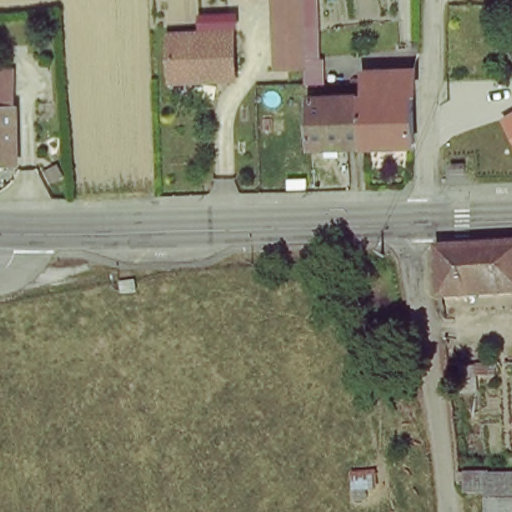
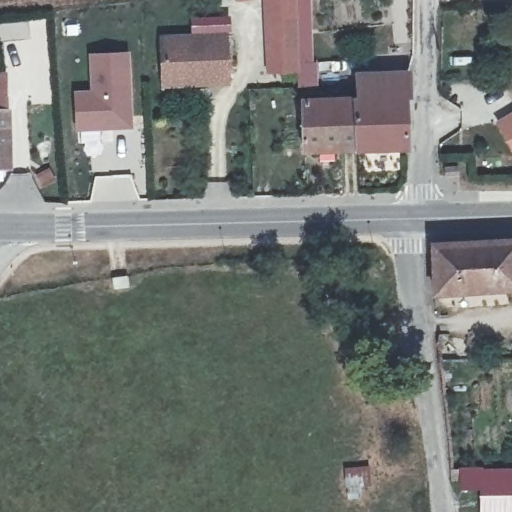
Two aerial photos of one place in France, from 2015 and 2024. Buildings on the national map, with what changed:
unchanged [(267,70),(265,10),(239,13),(239,0),(310,0),(310,5),(313,70),(267,70)]
unchanged [(373,2),(373,0),(394,0),(373,2)]
unchanged [(166,37),(229,35),(233,75),(191,74),(193,86),(172,85),(166,37)]
new [(88,88),(88,52),(130,50),(134,129),(75,133),(73,89),(88,88)]
unchanged [(0,77),(8,77),(7,97),(15,150),(18,171),(0,170),(0,77)]
unchanged [(350,126),(349,113),(349,98),(350,90),(411,84),(411,150),(351,153),(350,126)]
unchanged [(512,112),(512,155),(494,124),(512,112)]
unchanged [(350,126),(351,153),(304,155),(300,116),(349,113),(350,126)]
unchanged [(446,295),(443,247),(512,245),(512,292),(446,295)]
unchanged [(130,269),(129,293),(116,295),(116,271),(130,269)]
unchanged [(462,496),(460,465),(512,463),(512,512),(480,512),(480,497),(462,496)]

